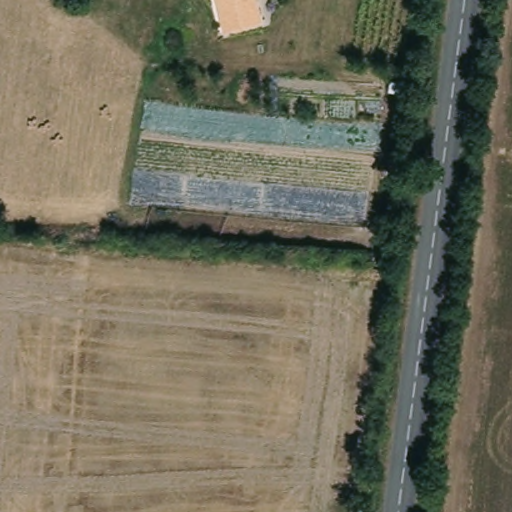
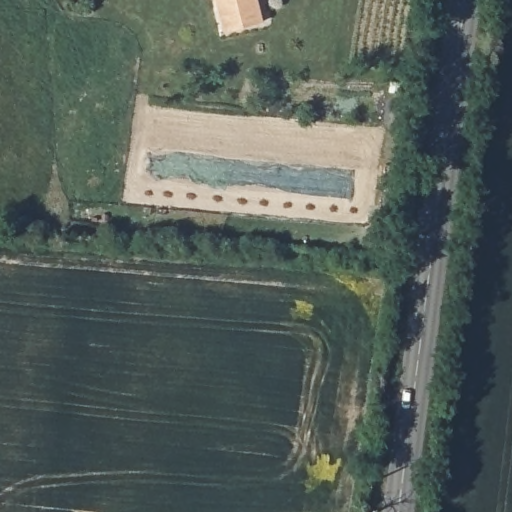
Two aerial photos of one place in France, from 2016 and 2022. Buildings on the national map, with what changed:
unchanged [(222,31),(215,0),(255,0),(260,20),(222,31)]

